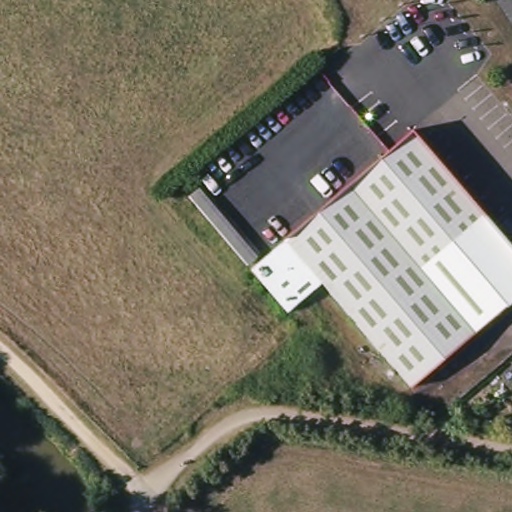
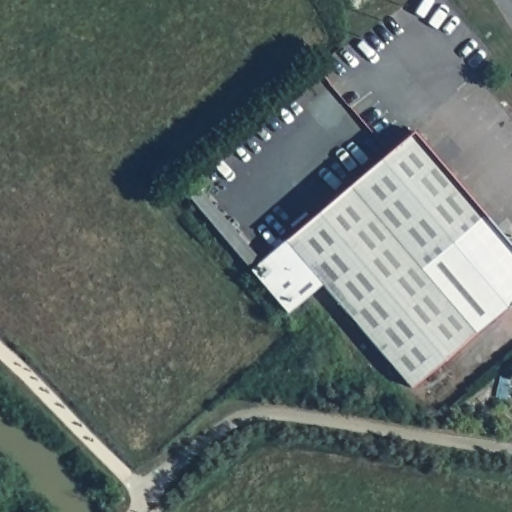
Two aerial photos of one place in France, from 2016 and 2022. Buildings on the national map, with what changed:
unchanged [(410,388),(321,283),(287,312),(246,272),(410,132),(500,237),(512,238),(512,301),(410,388)]

